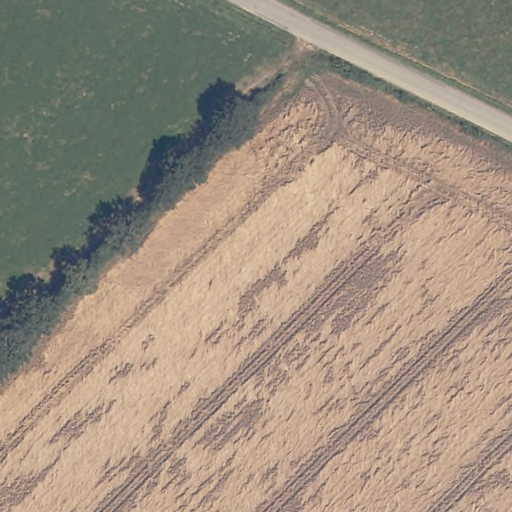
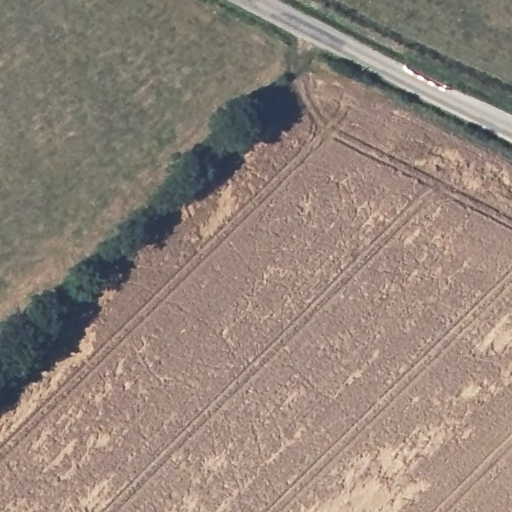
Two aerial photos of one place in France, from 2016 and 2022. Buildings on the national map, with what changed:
[]

